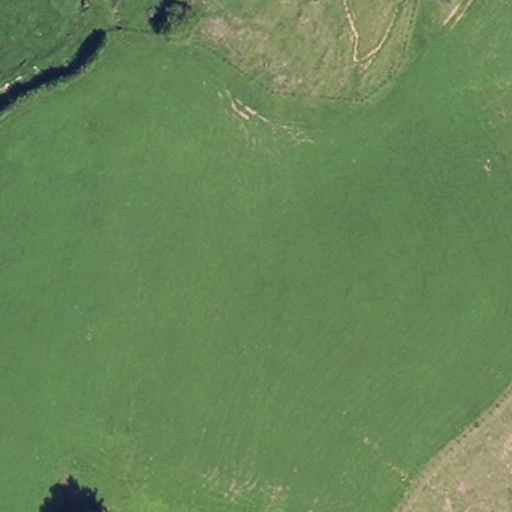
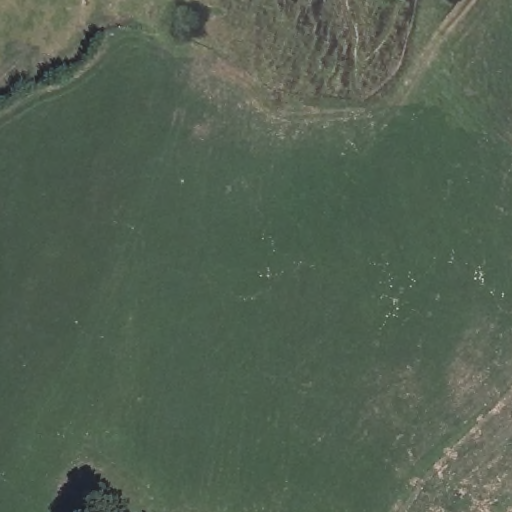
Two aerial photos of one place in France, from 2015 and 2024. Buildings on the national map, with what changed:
[]

